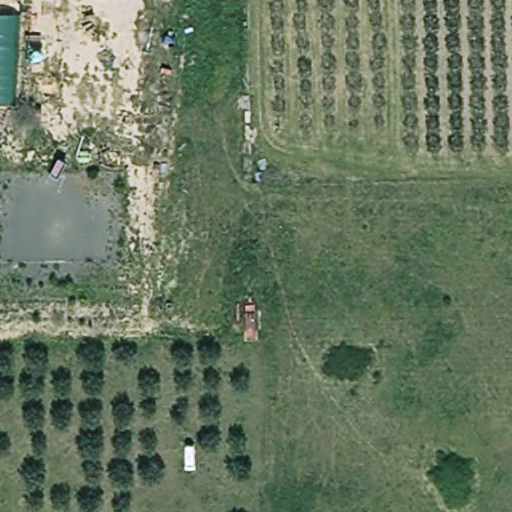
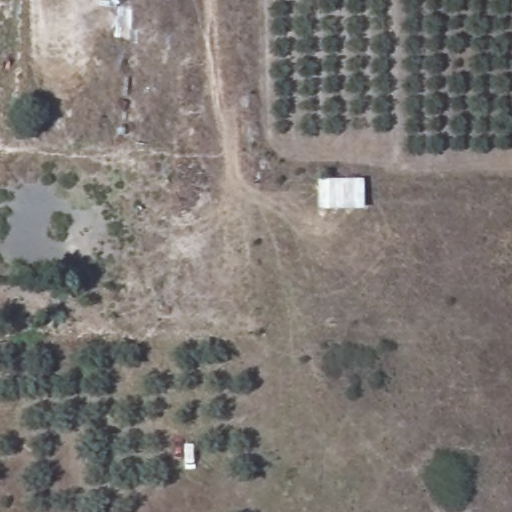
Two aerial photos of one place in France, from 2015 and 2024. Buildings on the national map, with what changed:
new [(15,105),(0,104),(0,0),(20,0),(15,105)]

